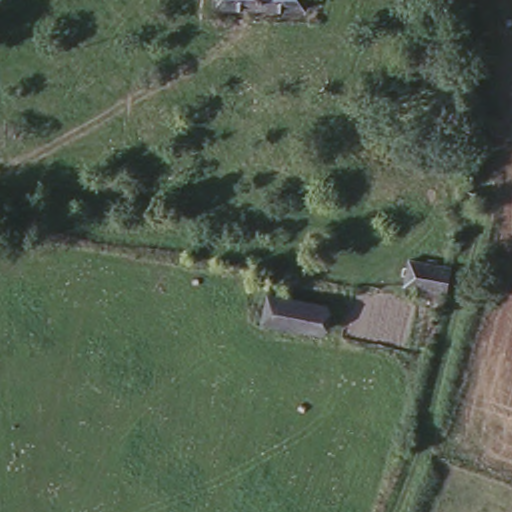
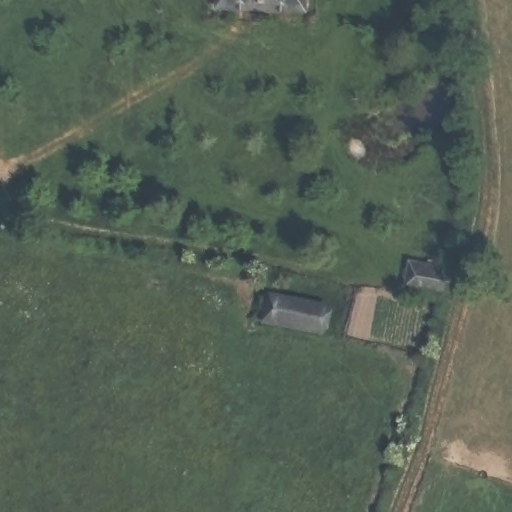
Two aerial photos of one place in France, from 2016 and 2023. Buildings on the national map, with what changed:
unchanged [(220,5),(221,0),(317,0),(315,17),(220,5)]
unchanged [(415,260),(454,268),(450,292),(410,283),(415,260)]
unchanged [(338,305),(330,333),(282,320),(290,292),(338,305)]

